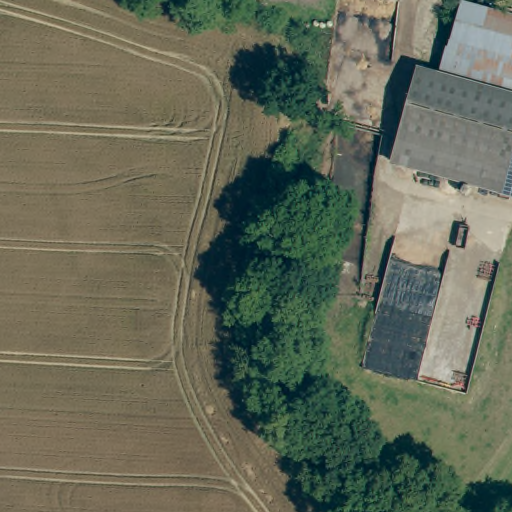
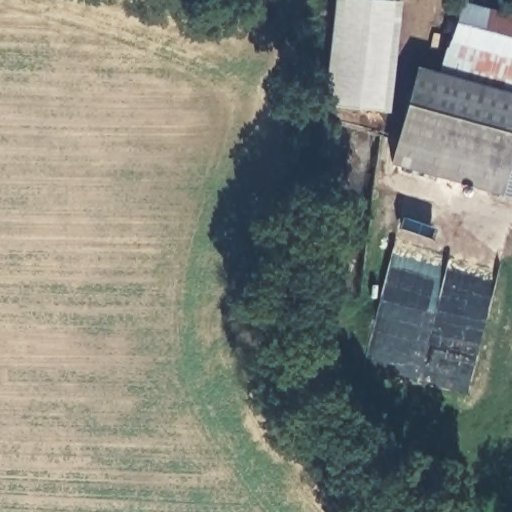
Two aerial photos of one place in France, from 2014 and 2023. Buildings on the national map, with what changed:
new [(400,1),(387,111),(321,104),(333,0),(389,0),(400,1)]
unchanged [(465,0),(467,0),(512,11),(512,90),(445,72),(465,0)]
unchanged [(421,67),(445,72),(512,90),(512,191),(395,160),(421,67)]

